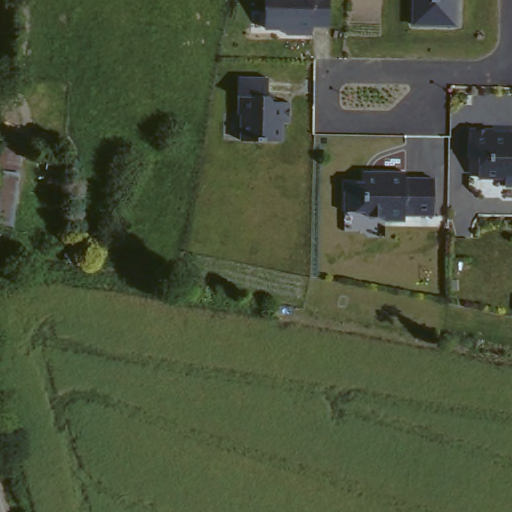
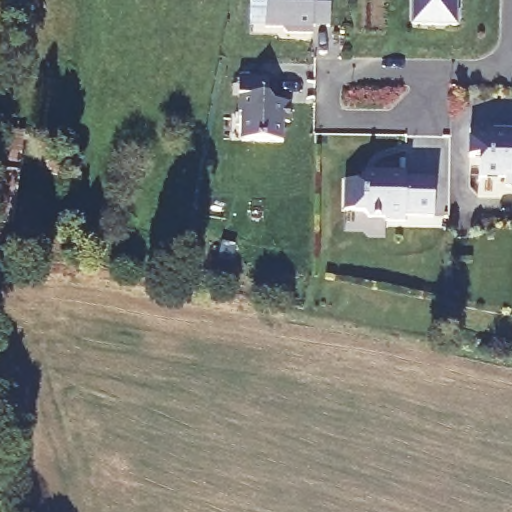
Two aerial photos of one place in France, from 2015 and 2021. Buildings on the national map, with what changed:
unchanged [(310,29),(310,36),(283,35),(278,30),(264,30),(264,0),(328,0),(327,29),(310,29)]
unchanged [(458,27),(458,32),(416,31),(416,0),(458,0),(459,1),(458,27)]
unchanged [(262,100),(267,105),(285,105),(284,125),(278,125),(277,145),(237,144),(237,116),(235,116),(235,100),(233,100),(234,80),(263,80),(262,100)]
unchanged [(0,221),(0,183),(9,129),(33,132),(20,221),(0,221)]
unchanged [(488,144),(502,144),(502,140),(512,140),(512,193),(502,193),(502,185),(476,185),(476,165),(466,165),(466,137),(488,137),(488,144)]
unchanged [(428,219),(400,218),(400,224),(380,224),(380,220),(363,220),(358,215),(339,214),(340,185),(359,185),(370,175),(401,175),(401,180),(429,181),(428,219)]

